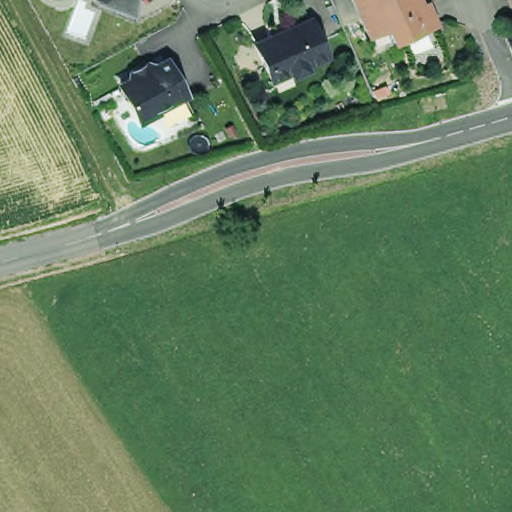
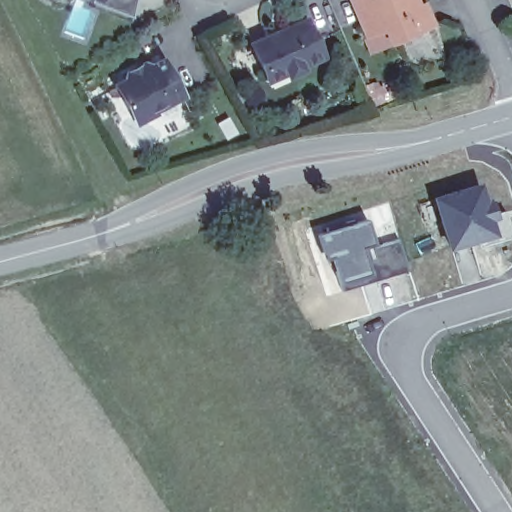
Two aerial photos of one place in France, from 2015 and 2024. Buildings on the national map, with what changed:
unchanged [(98,4),(99,0),(137,0),(133,17),(98,4)]
unchanged [(419,16),(414,19),(423,40),(393,53),(387,39),(368,47),(351,8),(369,0),(383,0),(384,2),(388,0),(413,0),(419,16)]
unchanged [(266,72),(253,45),(308,20),(324,57),(304,66),(306,71),(289,78),(288,74),(269,82),(266,72)]
unchanged [(154,105),(153,112),(144,117),(137,115),(131,103),(128,104),(123,95),(126,94),(119,82),(133,74),(129,67),(144,59),(148,66),(166,57),(183,90),(154,105)]
new [(486,183),(489,199),(494,197),(499,209),(501,215),(508,212),(512,226),(512,232),(450,249),(436,198),(486,183)]
new [(369,220),(374,246),(399,240),(409,271),(344,292),(334,254),(328,256),(321,233),(369,220)]

